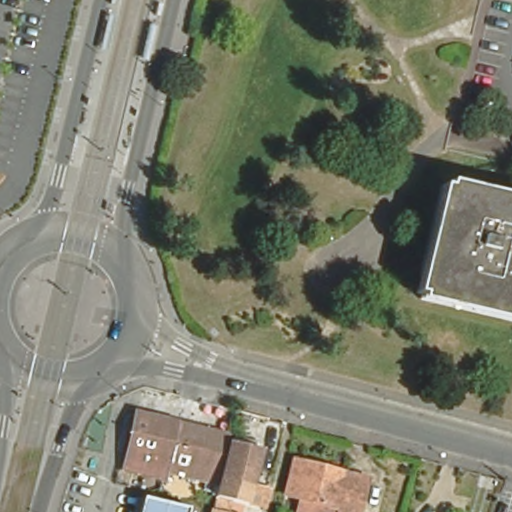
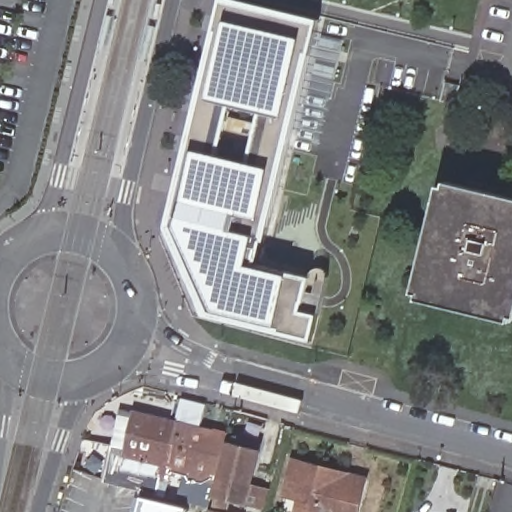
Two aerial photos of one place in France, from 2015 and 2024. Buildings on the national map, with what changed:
new [(167,227),(221,0),(243,0),(321,20),(263,267),(290,272),(312,277),(305,311),(320,315),(312,341),(205,316),(167,227)]
unchanged [(107,64),(100,61),(108,21),(115,24),(107,64)]
unchanged [(148,71),(137,70),(146,31),(159,32),(148,71)]
unchanged [(441,189),(417,292),(512,315),(512,323),(410,298),(436,180),(465,187),(464,195),(441,189)]
unchanged [(417,292),(441,189),(464,195),(512,206),(512,315),(417,292)]
unchanged [(215,495),(219,479),(215,478),(214,483),(167,472),(165,480),(123,470),(136,415),(225,435),(224,442),(260,452),(265,431),(281,435),(280,439),(275,457),(260,452),(255,470),(260,472),(256,483),(251,482),(246,503),(239,502),(215,496),(215,495)]
unchanged [(304,494),(286,490),(295,455),(364,472),(369,473),(359,512),(299,512),(304,494)]
unchanged [(111,509),(113,502),(139,508),(140,502),(141,495),(188,506),(186,512),(134,512),(111,509)]
unchanged [(217,511),(211,509),(215,495),(215,496),(239,502),(246,503),(244,512),(217,512),(217,511)]

